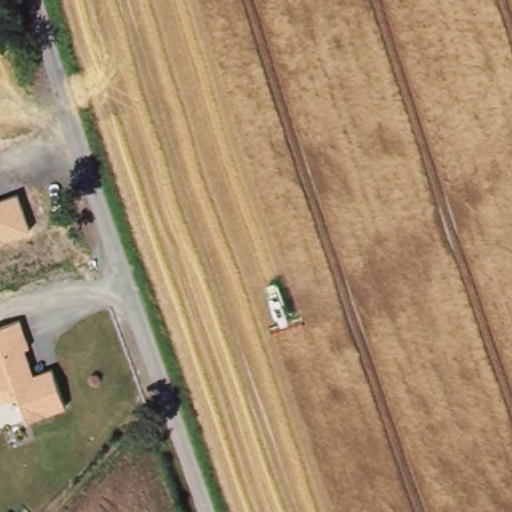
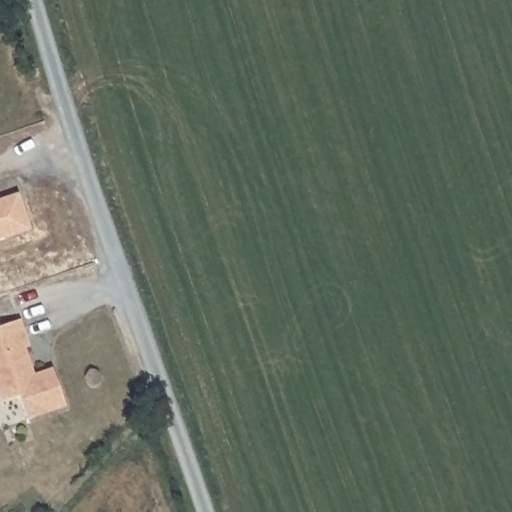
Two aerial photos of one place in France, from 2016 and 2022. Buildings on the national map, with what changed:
unchanged [(30,230),(0,241),(0,199),(19,192),(30,230)]
unchanged [(28,347),(24,350),(33,372),(51,368),(67,410),(26,424),(19,398),(0,403),(0,328),(20,321),(28,347)]

